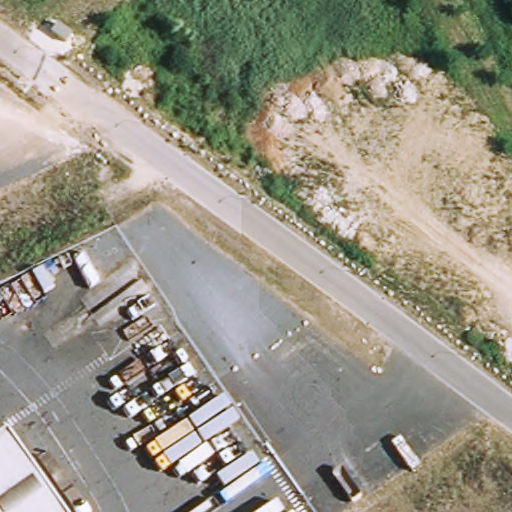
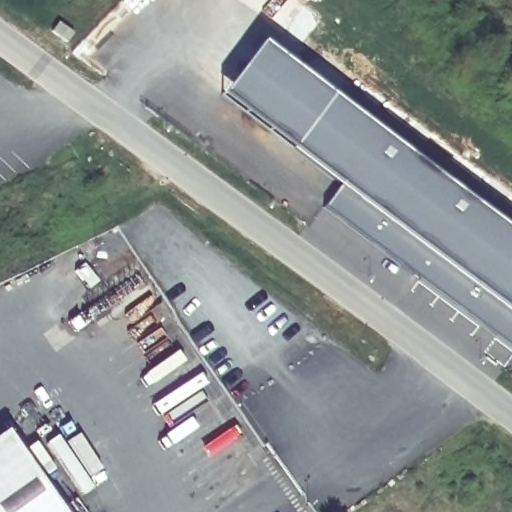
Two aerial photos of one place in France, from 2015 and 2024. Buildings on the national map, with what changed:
new [(326,207),(342,184),(221,94),(260,44),(512,232),(512,346),(326,207)]
unchanged [(60,512),(0,512),(0,437),(5,434),(60,512)]

